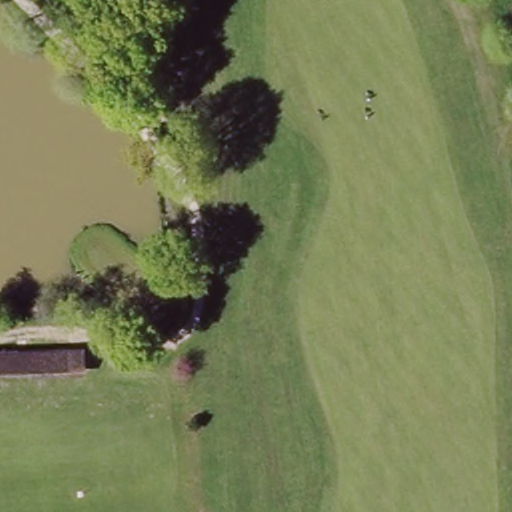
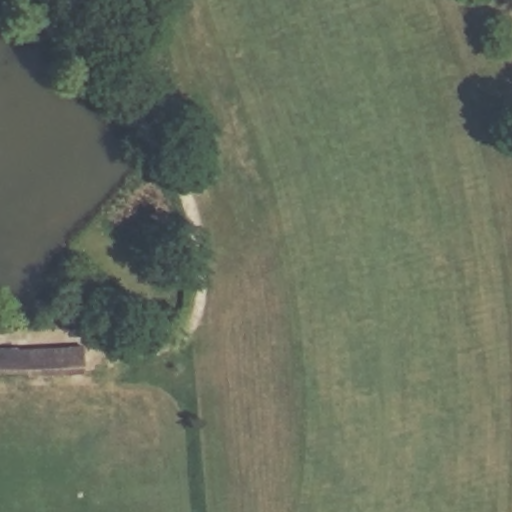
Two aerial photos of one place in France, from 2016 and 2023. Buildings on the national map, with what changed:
unchanged [(18,347),(18,339),(70,337),(70,347),(86,347),(88,377),(0,381),(0,348),(18,347)]

